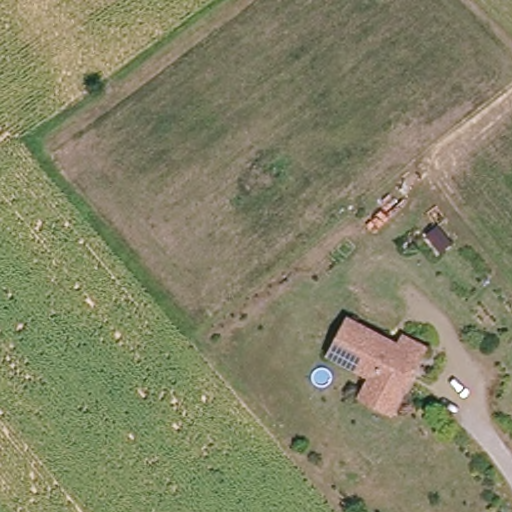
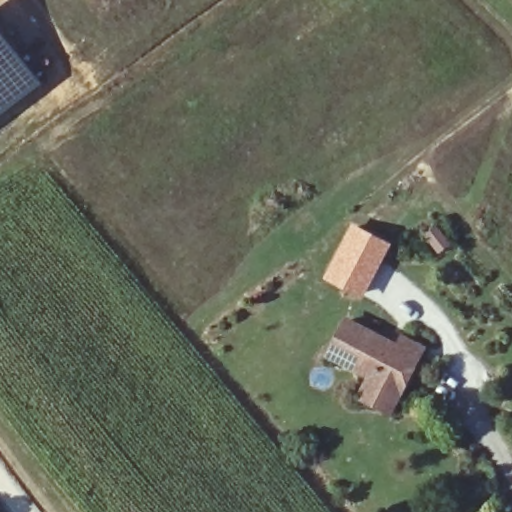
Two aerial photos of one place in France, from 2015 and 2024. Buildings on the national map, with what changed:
new [(43,83),(0,115),(0,26),(43,83)]
new [(352,222),(392,242),(361,299),(321,278),(352,222)]
unchanged [(368,402),(376,387),(379,381),(336,358),(355,323),(407,352),(412,340),(433,352),(405,403),(398,419),(368,402)]

